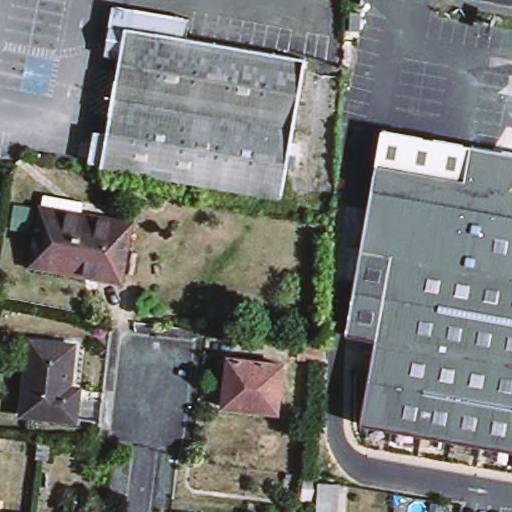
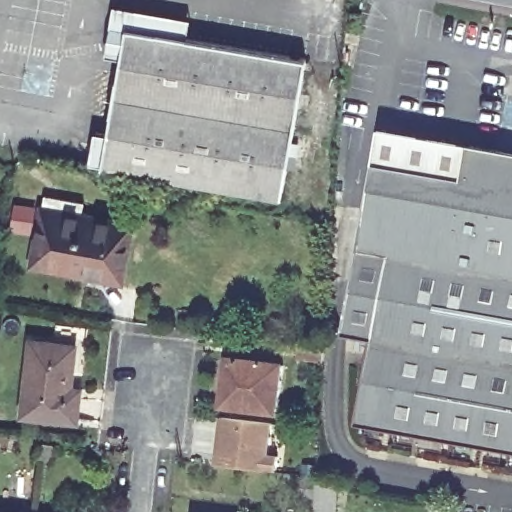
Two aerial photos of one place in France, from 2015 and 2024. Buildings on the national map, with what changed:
unchanged [(363,25),(352,25),(353,6),(364,6),(363,25)]
unchanged [(104,59),(111,12),(189,26),(186,44),(124,34),(119,62),(104,59)]
unchanged [(92,139),(105,140),(119,62),(124,34),(186,44),(303,65),(278,205),(99,172),(100,171),(87,169),(92,139)]
unchanged [(382,134),(471,150),(465,184),(377,167),(382,134)]
unchanged [(465,184),(471,150),(512,157),(512,452),(360,425),(375,340),(346,335),(377,167),(465,184)]
unchanged [(32,256),(41,211),(129,228),(119,283),(96,279),(31,267),(32,256)]
unchanged [(79,395),(76,423),(20,418),(27,342),(74,346),(70,388),(80,390),(79,395)]
unchanged [(322,349),(322,363),(298,360),(300,346),(322,349)]
unchanged [(282,366),(277,415),(221,410),(226,360),(282,366)]
new [(217,464),(222,417),(273,423),(270,454),(280,456),(277,470),(217,464)]
unchanged [(36,445),(50,447),(48,462),(35,460),(36,445)]
unchanged [(301,500),(303,478),(317,480),(317,484),(338,486),(336,512),(315,512),(315,500),(301,500)]

